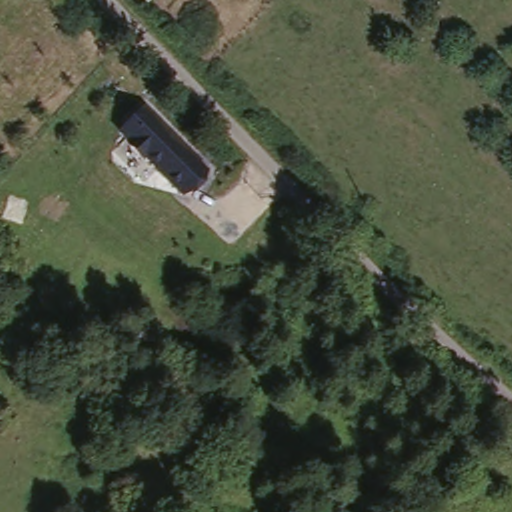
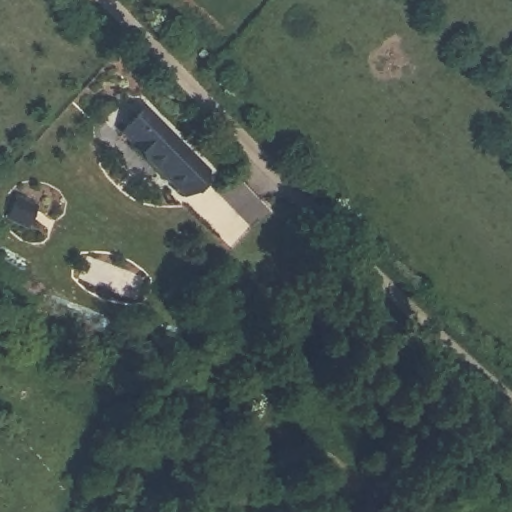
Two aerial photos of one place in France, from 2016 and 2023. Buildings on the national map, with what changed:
unchanged [(143,107),(207,172),(181,197),(116,133),(143,107)]

